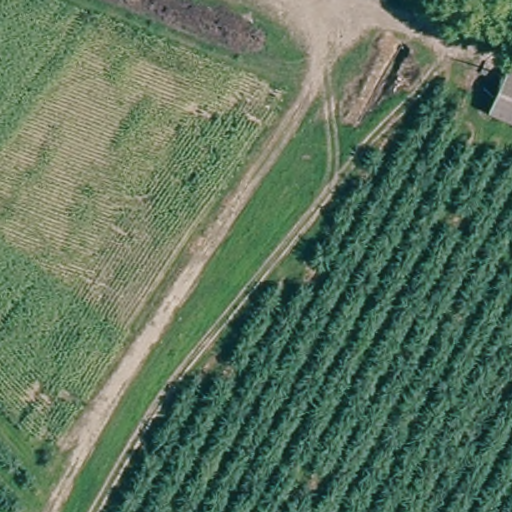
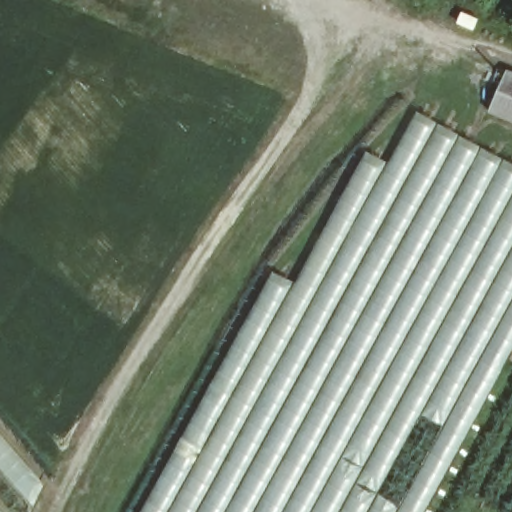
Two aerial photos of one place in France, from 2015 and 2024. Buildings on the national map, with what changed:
unchanged [(506,75),(512,78),(512,122),(490,112),(506,75)]
new [(142,512),(273,272),(293,284),(367,151),(387,162),(417,109),(512,161),(512,352),(424,512),(142,512)]
new [(45,484),(31,512),(0,512),(0,432),(45,484)]

